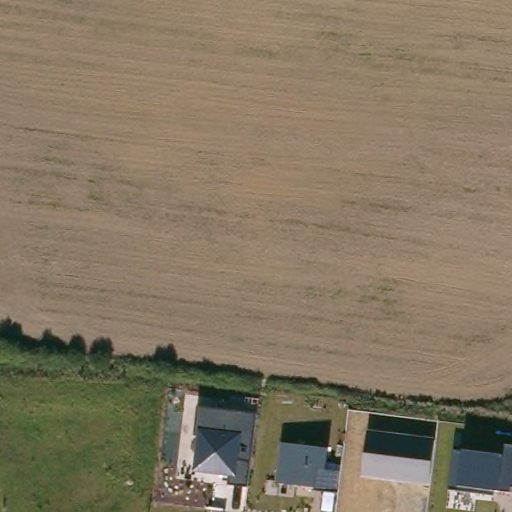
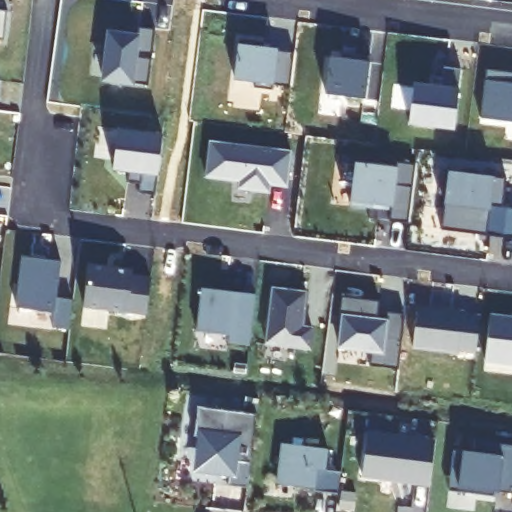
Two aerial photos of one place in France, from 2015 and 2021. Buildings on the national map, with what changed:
new [(5,9),(2,39),(0,39),(0,8),(5,9)]
new [(108,32),(136,35),(137,26),(154,29),(147,85),(102,80),(108,32)]
new [(239,38),(263,41),(262,46),(276,48),(276,49),(293,51),(289,86),(271,84),(271,89),(253,87),(254,82),(234,79),(239,38)]
new [(330,56),(340,58),(341,50),(370,54),(365,99),(325,94),(330,56)]
new [(485,83),(485,71),(512,74),(512,123),(480,119),(485,83)]
new [(211,143),(290,153),(286,189),(270,186),(269,193),(238,189),(239,182),(205,177),(211,143)]
new [(342,154),(367,158),(366,163),(395,167),(395,161),(414,163),(407,222),(388,220),(390,205),(370,203),(370,208),(349,205),(352,181),(340,179),(342,154)]
new [(506,178),(502,206),(512,207),(512,239),(484,235),(485,230),(476,229),(476,234),(439,229),(443,194),(436,193),(440,170),(506,178)]
new [(84,307),(88,265),(132,269),(131,277),(150,279),(145,314),(84,307)]
new [(270,288),(306,293),(302,328),(312,329),(310,349),(264,344),(270,288)]
new [(227,343),(228,335),(195,332),(201,289),(255,296),(249,344),(227,343)]
new [(341,297),(378,302),(375,317),(387,318),(387,313),(403,314),(396,369),(370,366),(370,354),(339,349),(343,315),(339,315),(341,297)]
new [(416,306),(463,311),(463,315),(480,318),(475,354),(458,351),(457,354),(411,349),(416,306)]
new [(512,317),(512,365),(485,361),(490,314),(512,317)]
unchanged [(229,477),(194,473),(197,437),(194,436),(197,408),(256,414),(246,488),(227,486),(229,477)]
unchanged [(361,477),(369,431),(435,440),(430,486),(361,477)]
unchanged [(280,443),(328,448),(326,471),(340,474),(338,494),(315,491),(315,488),(275,484),(280,443)]
unchanged [(511,493),(495,491),(493,496),(450,490),(453,451),(462,451),(502,456),(505,446),(512,446),(512,489),(511,489),(511,493)]

